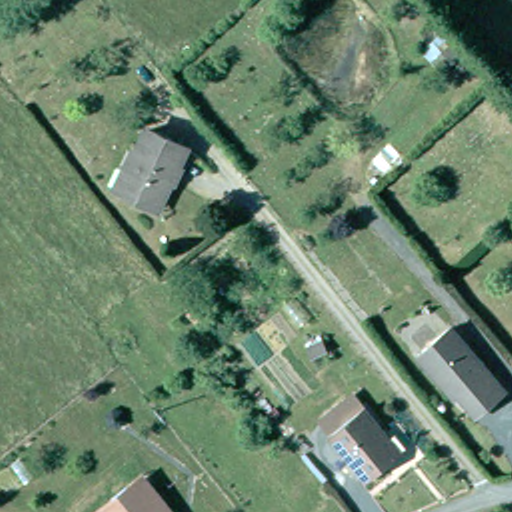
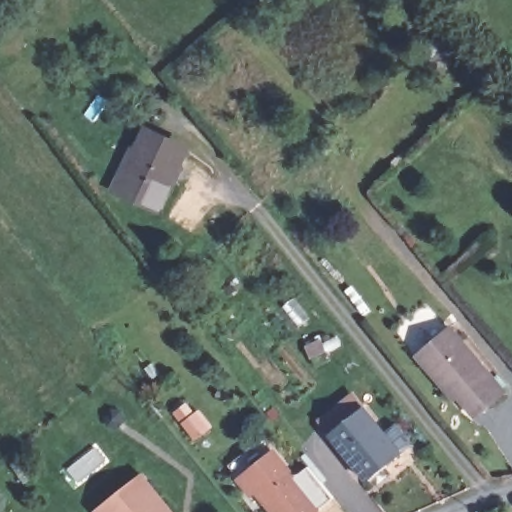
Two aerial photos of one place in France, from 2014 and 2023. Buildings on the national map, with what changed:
unchanged [(442,26),(471,52),(442,79),(417,51),(442,26)]
unchanged [(177,181),(173,179),(160,208),(125,193),(118,190),(136,149),(139,150),(147,133),(186,150),(178,167),(182,169),(177,181)]
unchanged [(447,392),(413,353),(445,325),(502,390),(475,414),(457,394),(453,398),(447,392)]
unchanged [(326,337),(331,346),(318,353),(312,345),(326,337)]
unchanged [(365,481),(325,434),(316,422),(355,391),(361,406),(400,454),(365,481)]
new [(335,497),(321,509),(317,512),(273,512),(257,493),(252,497),(237,478),(240,476),(230,464),(265,436),(274,448),(276,446),(299,474),(310,467),(335,497)]
unchanged [(93,511),(109,499),(127,484),(140,475),(146,483),(170,512),(95,512),(93,511)]
demolished [(333,495),(346,512),(310,512),(333,495)]

